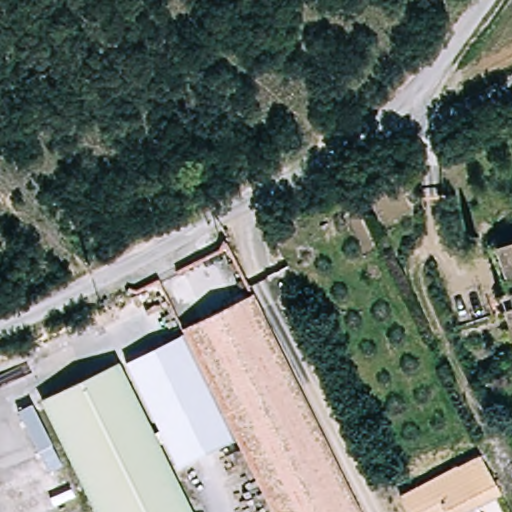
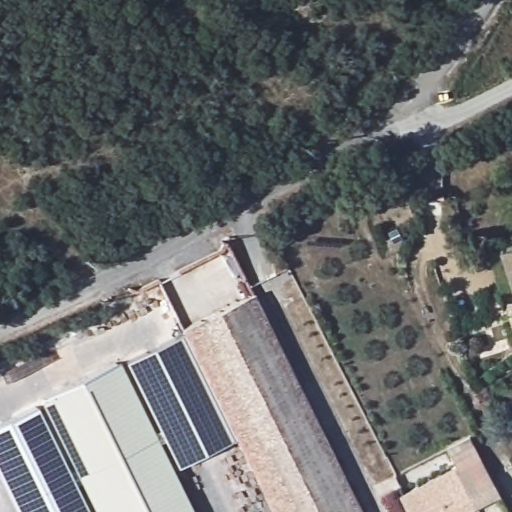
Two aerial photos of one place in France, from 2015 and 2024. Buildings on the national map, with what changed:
unchanged [(505,248),(512,245),(512,271),(505,248)]
unchanged [(255,295),(294,374),(361,512),(274,512),(185,330),(255,295)]
unchanged [(512,298),(512,304),(510,298),(512,298)]
unchanged [(237,438),(179,469),(126,363),(187,335),(237,438)]
unchanged [(117,362),(190,512),(98,512),(42,399),(117,362)]
new [(75,486),(88,512),(16,512),(0,480),(0,424),(35,406),(69,473),(77,469),(82,481),(75,486)]
unchanged [(408,512),(401,499),(480,456),(500,494),(468,512),(408,512)]
new [(483,512),(469,512),(480,506),(483,512)]

